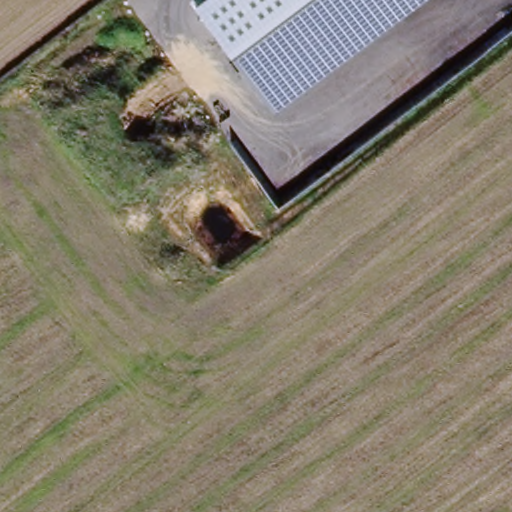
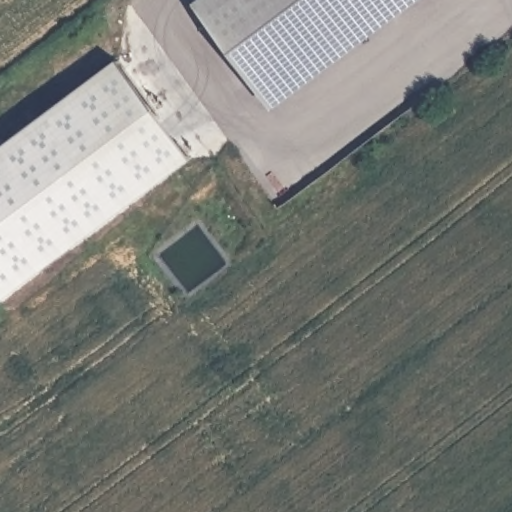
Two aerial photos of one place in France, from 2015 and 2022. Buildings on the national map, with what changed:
unchanged [(200,0),(419,0),(274,109),(193,6),(200,0)]
new [(193,158),(0,301),(0,148),(118,60),(193,158)]

